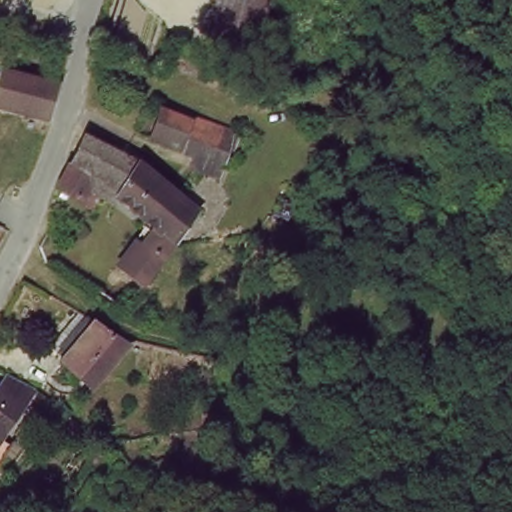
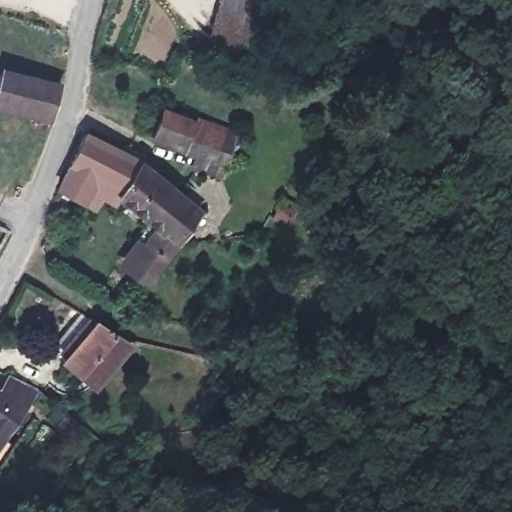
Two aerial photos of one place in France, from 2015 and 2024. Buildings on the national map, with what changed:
unchanged [(214,47),(222,0),(274,0),(264,56),(214,47)]
unchanged [(0,107),(0,87),(6,69),(60,84),(48,125),(0,107)]
unchanged [(228,127),(238,132),(220,175),(203,167),(208,156),(158,132),(169,102),(228,127)]
unchanged [(94,133),(135,156),(133,160),(118,184),(107,178),(79,162),(94,133)]
unchanged [(107,178),(118,184),(133,160),(135,156),(149,164),(132,190),(125,200),(120,208),(107,200),(100,213),(64,192),(79,162),(107,178)]
unchanged [(135,270),(151,246),(163,229),(125,200),(132,190),(149,164),(209,214),(187,242),(185,245),(172,262),(156,282),(135,270)]
unchanged [(96,276),(130,299),(121,312),(86,291),(93,280),(94,278),(96,276)]
unchanged [(78,373),(64,361),(66,358),(54,347),(82,318),(96,327),(115,341),(83,378),(78,373)]
unchanged [(115,341),(127,349),(133,356),(97,390),(83,378),(115,341)]
unchanged [(9,376),(36,390),(0,435),(0,386),(9,376)]

